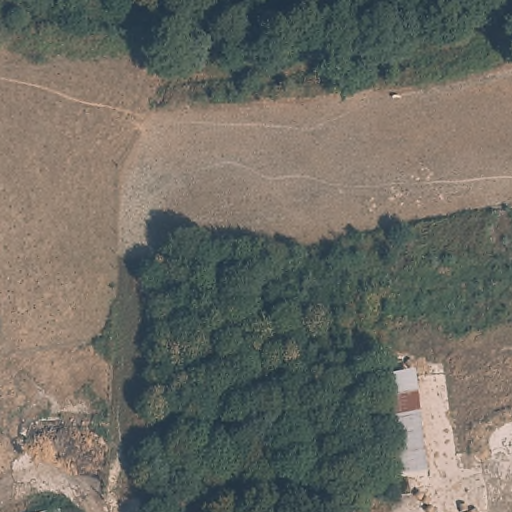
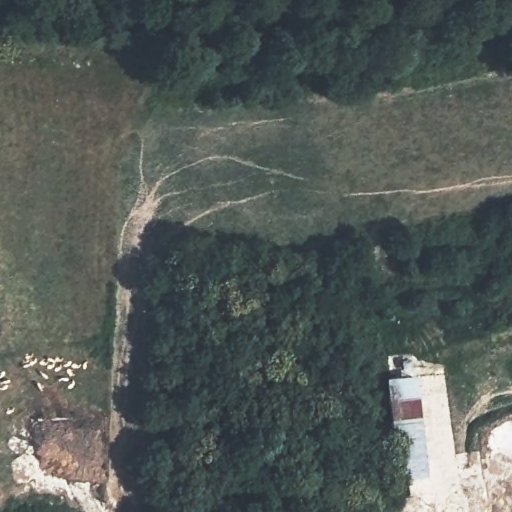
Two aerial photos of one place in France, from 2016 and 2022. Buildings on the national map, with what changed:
unchanged [(416,376),(429,474),(397,478),(382,379),(416,376)]

